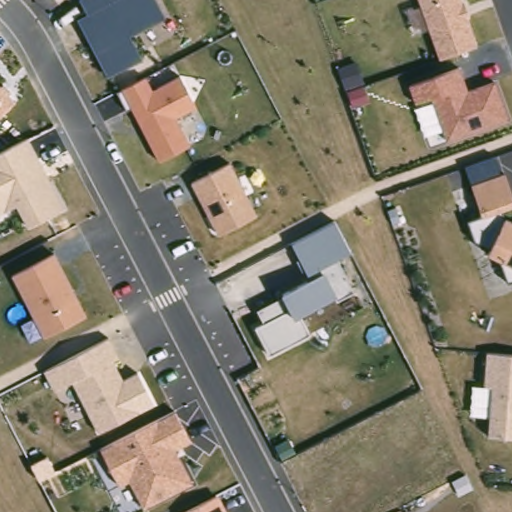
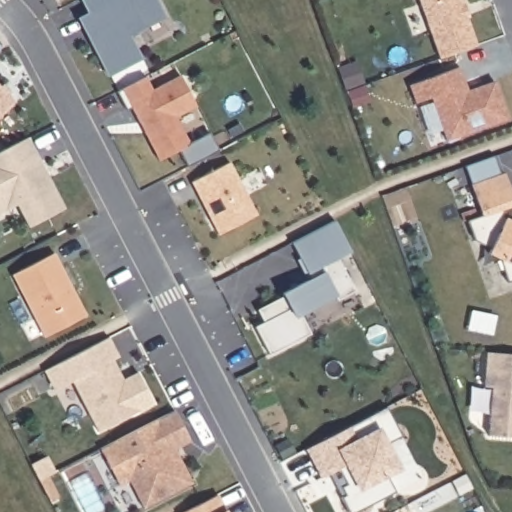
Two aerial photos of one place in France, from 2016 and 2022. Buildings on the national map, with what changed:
unchanged [(76,18),(86,12),(80,0),(155,0),(165,19),(131,38),(143,61),(106,79),(76,18)]
unchanged [(418,0),(459,0),(476,45),(438,58),(418,0)]
unchanged [(432,97),(415,102),(410,85),(459,68),(468,91),(494,82),(506,120),(447,142),(432,97)]
unchanged [(121,89),(145,77),(151,88),(179,74),(194,106),(174,117),(189,145),(158,161),(121,89)]
unchanged [(0,115),(0,88),(14,101),(0,115)]
unchanged [(64,209),(24,228),(15,206),(0,213),(0,151),(26,137),(64,209)]
unchanged [(189,183),(227,163),(255,215),(217,236),(189,183)]
unchanged [(506,281),(499,259),(487,253),(489,247),(474,241),(469,222),(481,217),(469,185),(503,175),(512,204),(512,279),(506,281)]
unchanged [(254,327),(264,321),(257,308),(279,294),(309,277),(290,244),(333,221),(349,253),(337,260),(353,291),(334,301),(333,297),(299,315),(309,335),(269,355),(254,327)]
unchanged [(9,276),(53,253),(86,316),(44,337),(9,276)]
unchanged [(71,383),(54,392),(44,373),(106,338),(118,358),(110,362),(119,380),(135,373),(152,406),(98,433),(71,383)]
unchanged [(487,435),(489,385),(483,385),(485,353),(512,354),(512,437),(487,435)]
new [(399,493),(362,512),(350,512),(343,499),(348,497),(344,489),(349,486),(340,470),(324,479),(308,450),(374,416),(389,408),(404,438),(389,446),(401,470),(389,476),(399,493)]
unchanged [(128,482),(118,486),(99,448),(174,412),(188,442),(174,449),(191,484),(144,508),(128,482)]
unchanged [(224,512),(188,512),(216,498),(224,512)]

